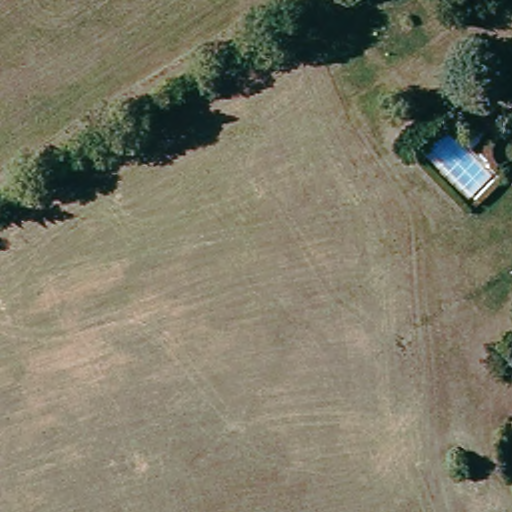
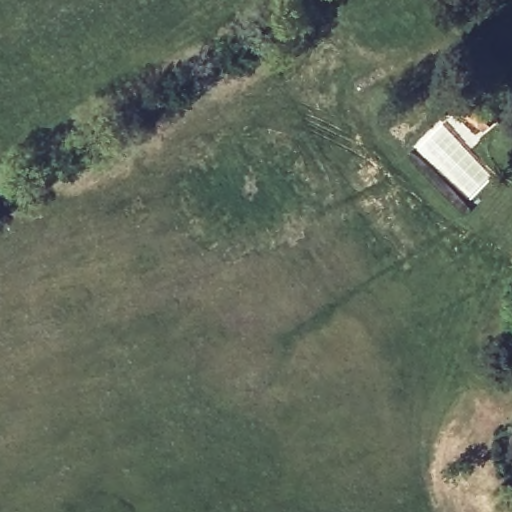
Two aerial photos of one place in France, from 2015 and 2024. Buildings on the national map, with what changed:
unchanged [(496,112),(510,127),(499,143),(478,128),(496,112)]

